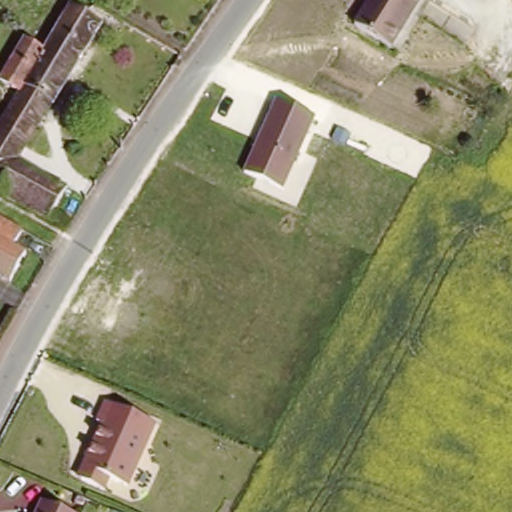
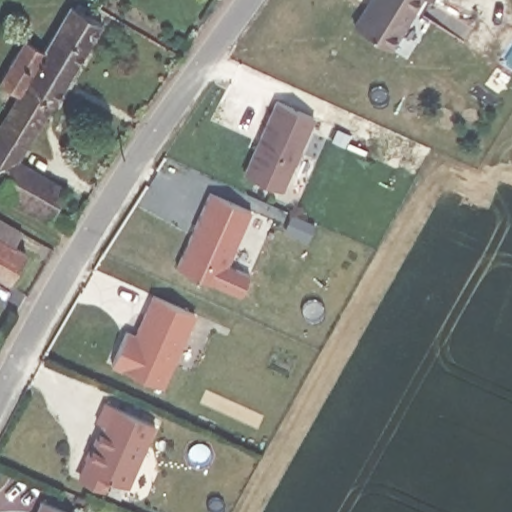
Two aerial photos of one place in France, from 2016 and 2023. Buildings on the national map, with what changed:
unchanged [(355,25),(371,0),(421,0),(391,48),(355,25)]
unchanged [(429,0),(432,0),(431,1),(429,0)]
unchanged [(3,199),(12,181),(0,175),(0,141),(24,100),(3,88),(28,45),(48,57),(74,10),(91,20),(106,28),(59,110),(55,109),(21,167),(71,192),(53,225),(3,199)]
unchanged [(242,173),(274,96),(317,115),(285,190),(242,173)]
new [(178,267),(212,192),(253,211),(229,264),(251,274),(242,296),(178,267)]
unchanged [(22,237),(12,253),(25,260),(10,287),(0,281),(0,225),(22,237)]
new [(114,365),(128,331),(137,335),(154,295),(197,313),(165,387),(114,365)]
unchanged [(109,479),(103,492),(76,481),(108,401),(157,421),(129,487),(109,479)]
unchanged [(41,500),(70,512),(36,512),(41,500)]

